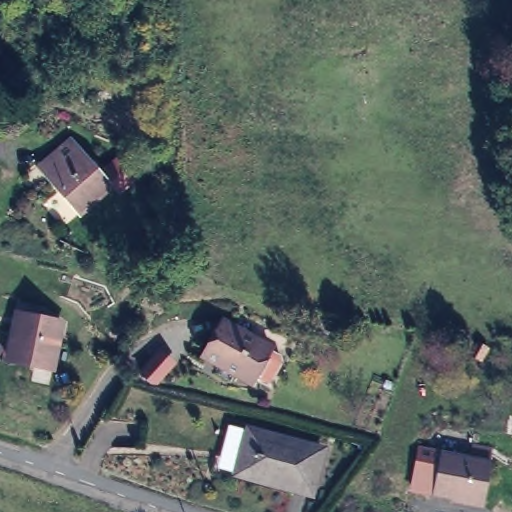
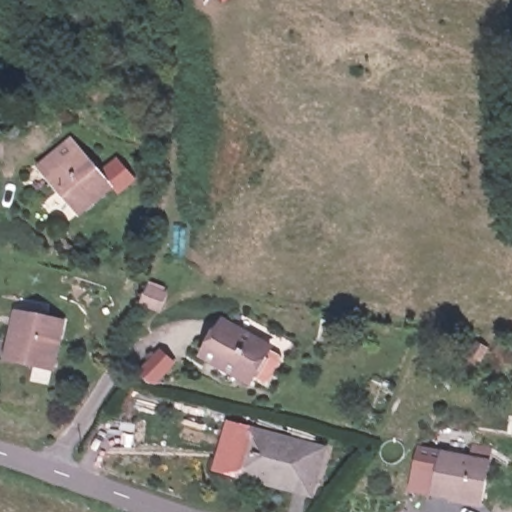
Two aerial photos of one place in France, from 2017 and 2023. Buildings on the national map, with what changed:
unchanged [(109,188),(80,214),(59,190),(62,186),(56,179),(53,181),(43,166),(70,143),(109,188)]
unchanged [(147,299),(142,316),(125,310),(131,293),(147,299)]
unchanged [(270,341),(250,379),(200,353),(219,315),(270,341)]
unchanged [(37,370),(12,364),(16,341),(20,317),(25,318),(63,327),(55,368),(54,374),(37,370)]
unchanged [(319,449),(307,494),(233,474),(245,430),(319,449)]
unchanged [(466,462),(470,445),(492,449),(482,508),(408,494),(416,452),(466,462)]

